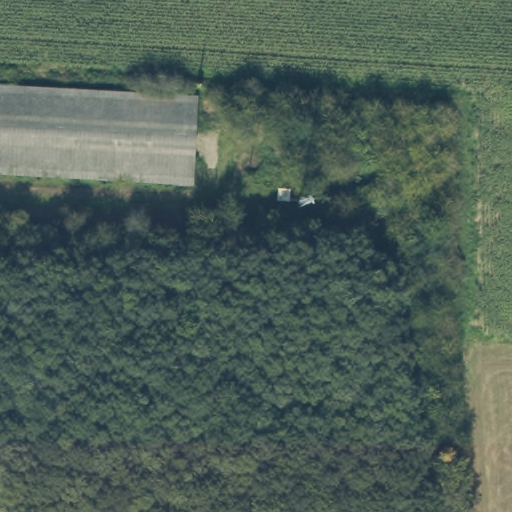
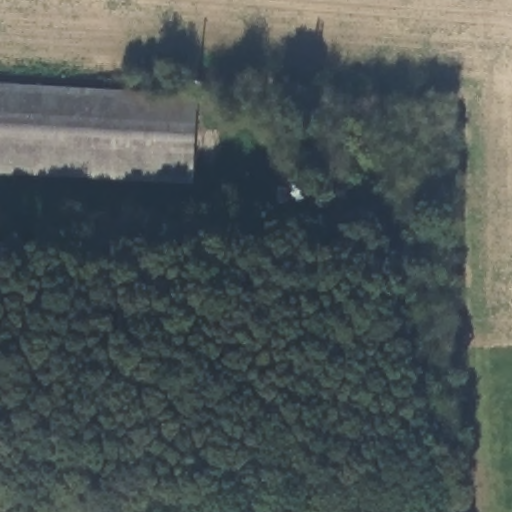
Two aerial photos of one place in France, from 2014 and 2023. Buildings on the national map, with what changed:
unchanged [(0,175),(0,85),(197,96),(193,186),(0,175)]

